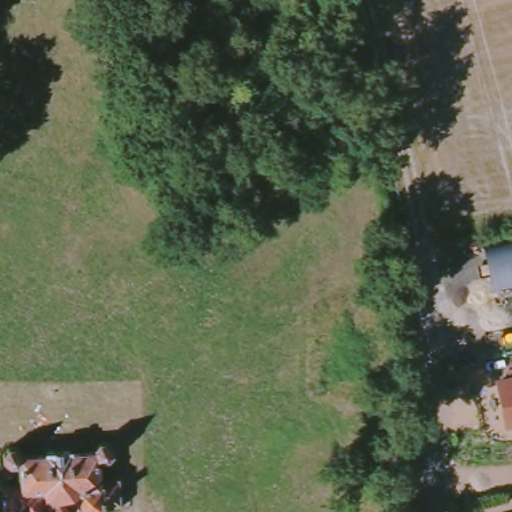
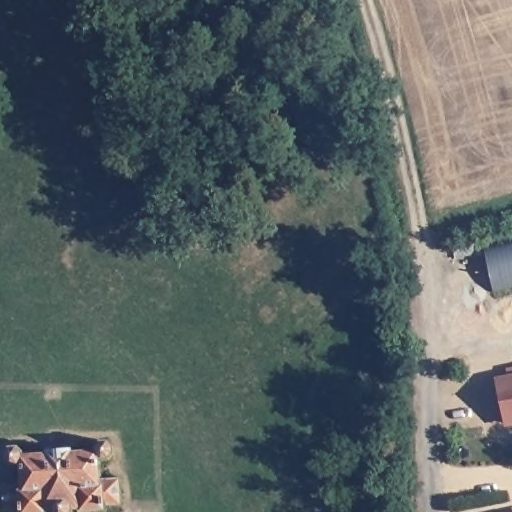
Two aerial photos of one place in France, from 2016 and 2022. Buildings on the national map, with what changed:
unchanged [(493,292),(484,250),(512,244),(512,289),(493,292)]
unchanged [(501,424),(495,378),(512,374),(512,422),(501,424)]
unchanged [(16,506),(0,506),(0,482),(18,481),(16,464),(10,463),(2,460),(0,454),(0,451),(3,445),(10,442),(18,446),(22,451),(30,454),(41,451),(42,445),(68,446),(69,451),(90,450),(90,444),(96,440),(104,440),(108,444),(110,451),(105,457),(99,459),(99,480),(116,480),(117,505),(100,505),(100,511),(17,511),(16,506)]

